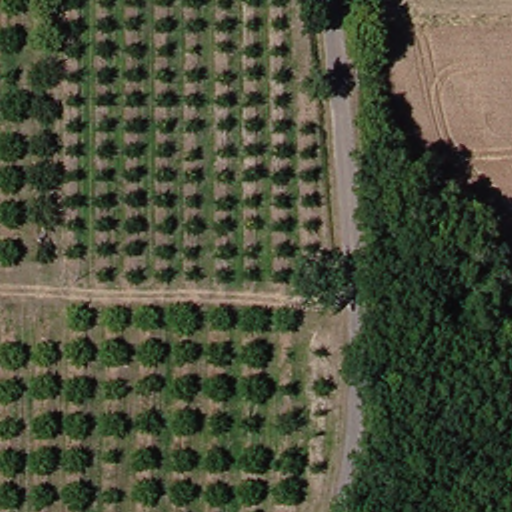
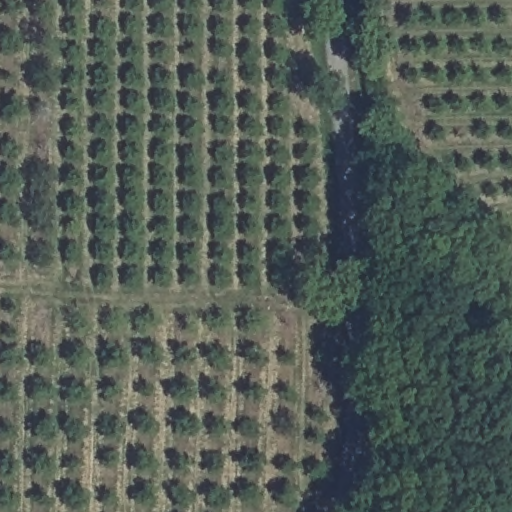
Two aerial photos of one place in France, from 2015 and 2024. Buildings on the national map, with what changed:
[]

